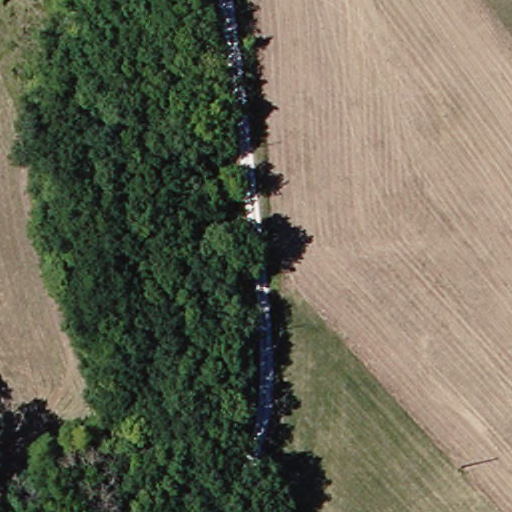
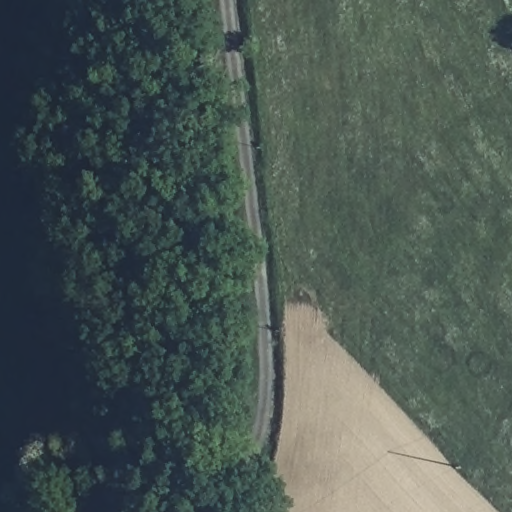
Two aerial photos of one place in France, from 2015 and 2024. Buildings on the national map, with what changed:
[]

